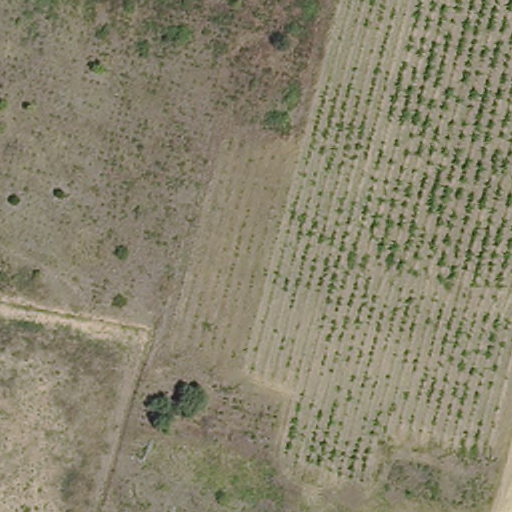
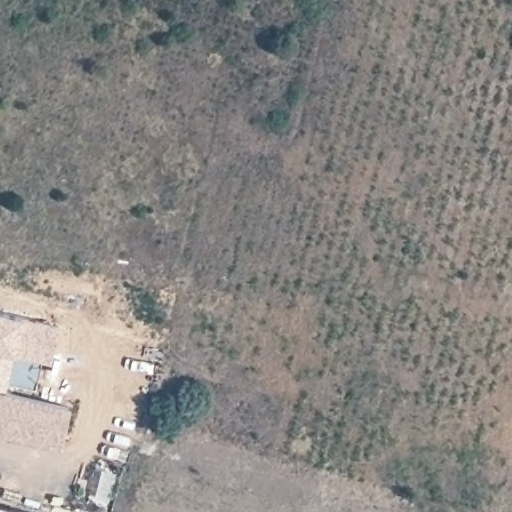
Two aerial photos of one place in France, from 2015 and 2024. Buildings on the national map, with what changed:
new [(57,324),(48,364),(40,363),(12,357),(7,384),(5,389),(0,388),(0,310),(57,324)]
new [(5,389),(67,404),(57,448),(0,434),(0,388),(5,389)]
new [(19,512),(0,512),(0,506),(19,512)]

